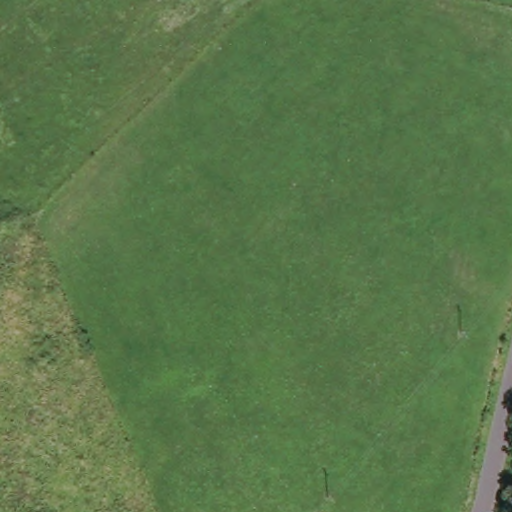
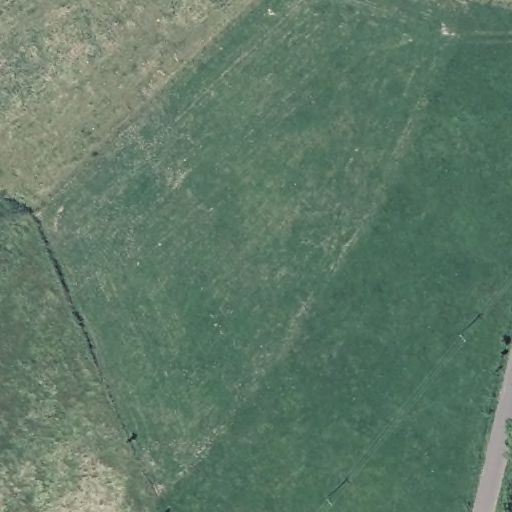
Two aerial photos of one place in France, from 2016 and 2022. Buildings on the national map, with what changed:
[]

